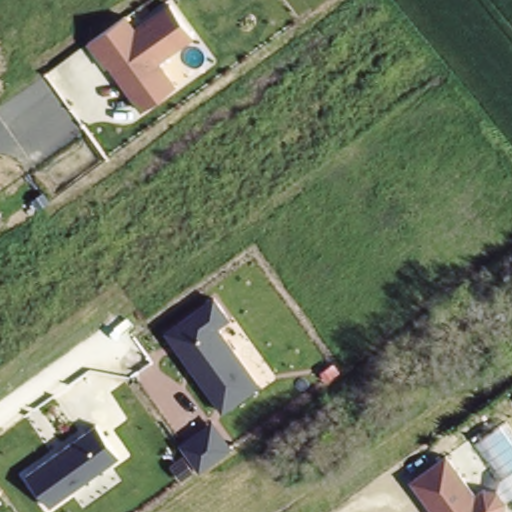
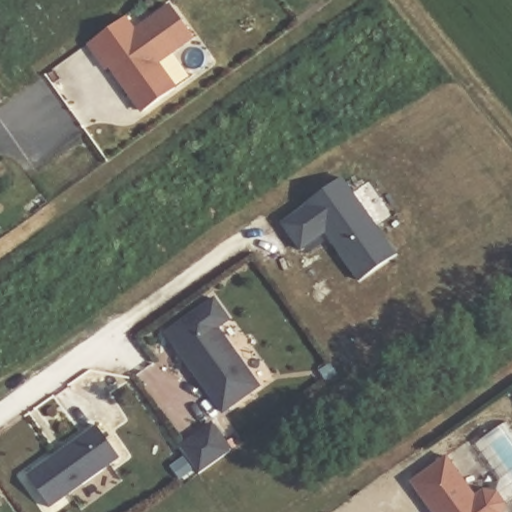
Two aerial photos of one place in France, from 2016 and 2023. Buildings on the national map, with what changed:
unchanged [(160,60),(178,84),(141,110),(90,41),(128,13),(136,24),(167,0),(170,0),(196,34),(160,60)]
new [(361,282),(326,234),(301,252),(281,223),(344,176),(399,254),(361,282)]
unchanged [(232,317),(221,326),(261,383),(223,409),(167,329),(214,292),(232,317)]
unchanged [(233,446),(201,470),(181,443),(213,419),(233,446)]
unchanged [(121,454),(51,505),(26,472),(97,421),(121,454)]
unchanged [(477,493),(484,488),(497,490),(509,508),(503,512),(431,512),(408,479),(444,453),(477,493)]

